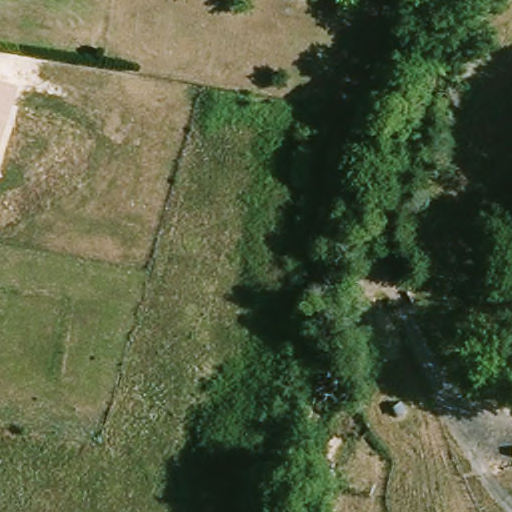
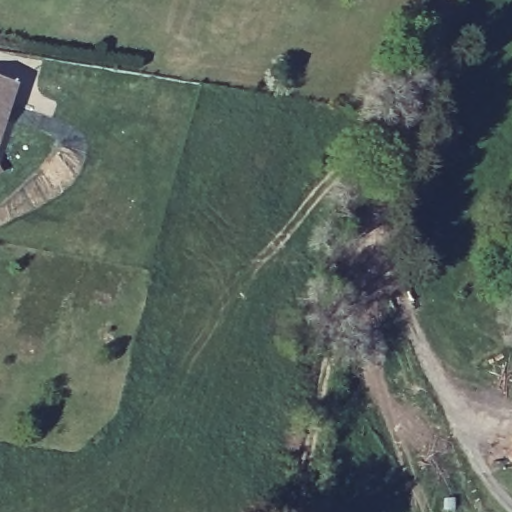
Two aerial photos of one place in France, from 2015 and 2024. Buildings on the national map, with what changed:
unchanged [(20,87),(0,150),(0,81),(20,87)]
unchanged [(3,176),(0,178),(0,171),(3,176)]

